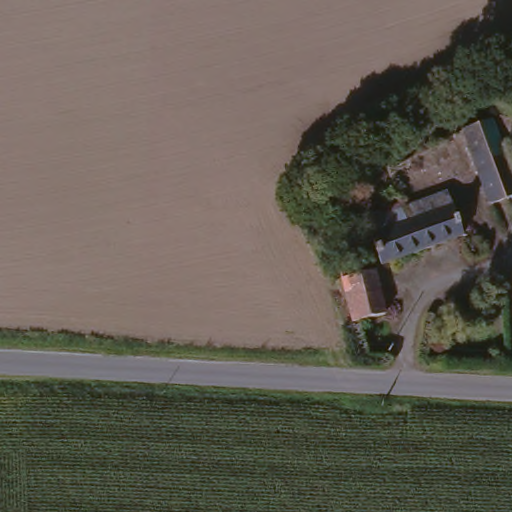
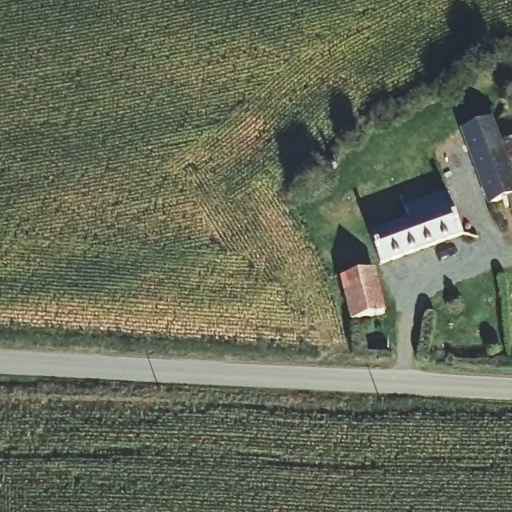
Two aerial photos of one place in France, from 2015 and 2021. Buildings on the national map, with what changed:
unchanged [(489,208),(456,136),(488,122),(498,147),(512,178),(512,199),(489,208)]
unchanged [(498,147),(512,142),(512,178),(498,147)]
unchanged [(403,221),(398,209),(440,192),(456,233),(373,264),(363,237),(403,221)]
unchanged [(374,271),(385,315),(353,324),(341,280),(374,271)]

